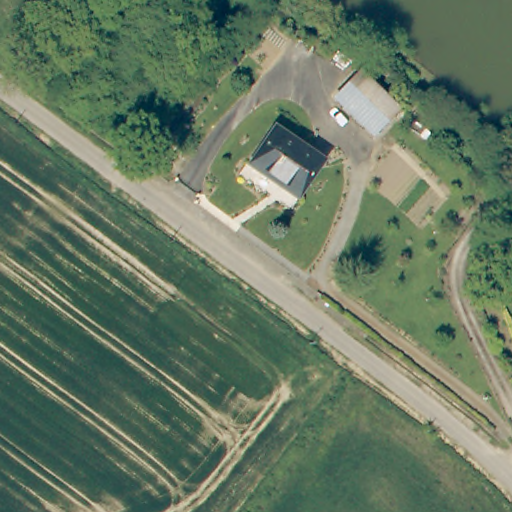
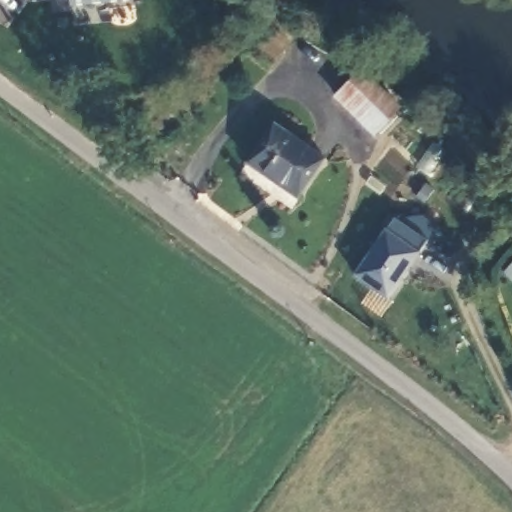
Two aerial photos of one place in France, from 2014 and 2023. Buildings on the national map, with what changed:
new [(71,7),(70,0),(125,0),(125,3),(71,7)]
unchanged [(360,72),(397,108),(372,133),(335,98),(360,72)]
unchanged [(297,200),(249,166),(275,129),(324,162),(297,200)]
new [(355,276),(386,230),(419,252),(387,297),(355,276)]

